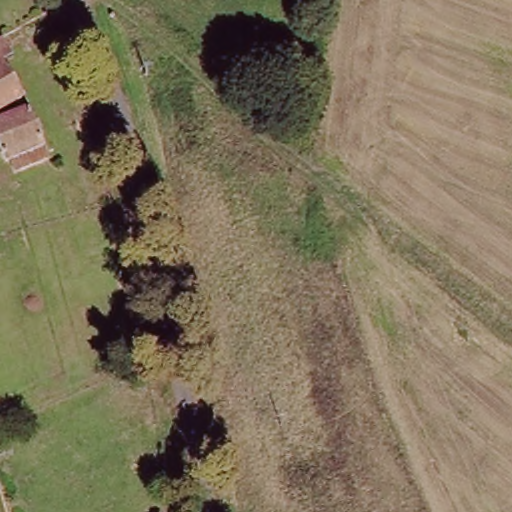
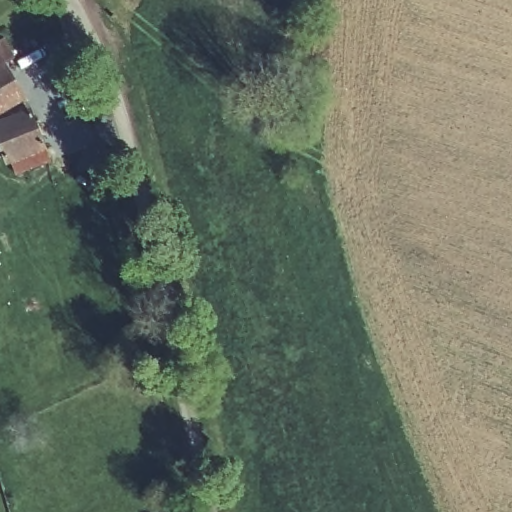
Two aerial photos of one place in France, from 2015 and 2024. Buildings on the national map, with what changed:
unchanged [(0,65),(0,39),(1,39),(12,57),(2,64),(0,65)]
unchanged [(22,99),(0,111),(0,65),(2,64),(22,99)]
unchanged [(4,164),(0,154),(0,122),(26,111),(42,150),(35,152),(40,163),(13,175),(7,162),(4,164)]

